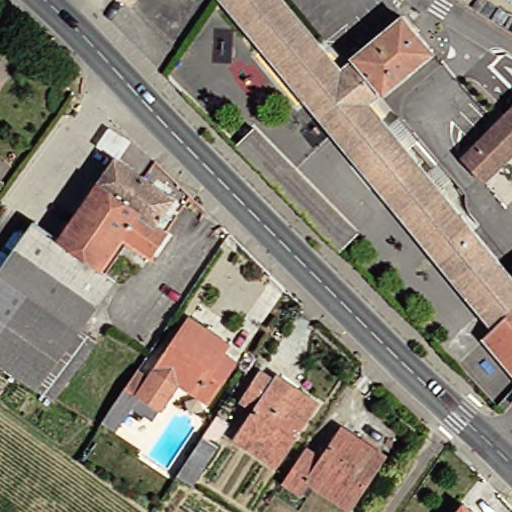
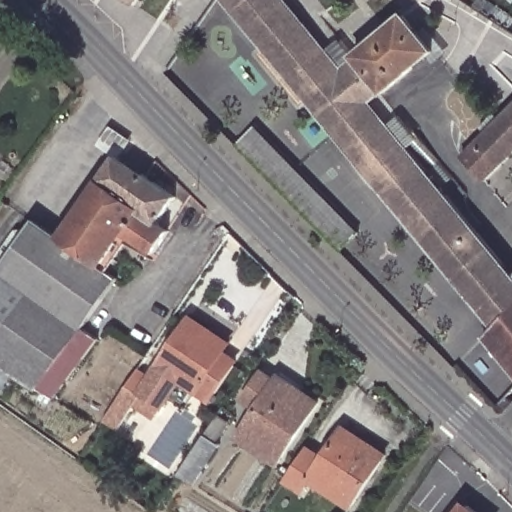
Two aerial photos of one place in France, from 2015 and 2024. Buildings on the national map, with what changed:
unchanged [(129,0),(135,0),(133,2),(129,0)]
unchanged [(227,0),(287,0),(344,69),(358,58),(357,55),(406,16),(434,50),(385,92),(383,90),(370,100),(403,140),(467,217),(512,272),(512,312),(497,328),(227,0)]
unchanged [(512,152),(485,177),(464,155),(512,109),(512,152)]
unchanged [(361,234),(344,249),(238,145),(258,126),(361,234)]
unchanged [(178,195),(160,222),(171,230),(155,252),(128,235),(106,270),(120,278),(82,328),(101,340),(55,402),(0,365),(0,275),(38,220),(65,237),(102,180),(120,155),(178,195)]
unchanged [(458,365),(497,328),(512,312),(512,390),(498,404),(458,365)]
unchanged [(196,317),(212,328),(234,343),(227,352),(240,360),(213,400),(185,380),(158,418),(139,405),(122,429),(108,420),(143,368),(155,376),(196,317)]
unchanged [(278,463),(240,436),(259,408),(245,398),(261,377),(274,386),(280,376),(300,390),(319,405),(278,463)]
unchanged [(314,480),(305,492),(288,480),(310,447),(327,460),(348,429),(366,441),(390,457),(386,463),(354,507),(314,480)]
unchanged [(199,439),(214,450),(186,490),(170,481),(199,439)]
unchanged [(466,505),(474,512),(461,512),(466,505)]

